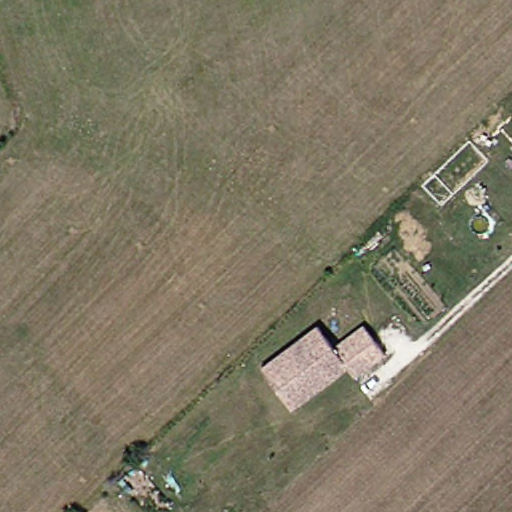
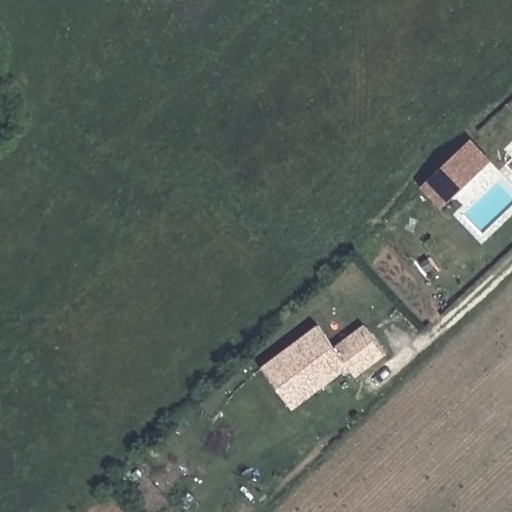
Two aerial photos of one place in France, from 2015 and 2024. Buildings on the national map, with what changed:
new [(491,160),(441,208),(421,187),(471,139),(491,160)]
unchanged [(260,367),(317,324),(333,346),(363,323),(385,351),(368,364),(354,374),(347,365),(292,408),(260,367)]

